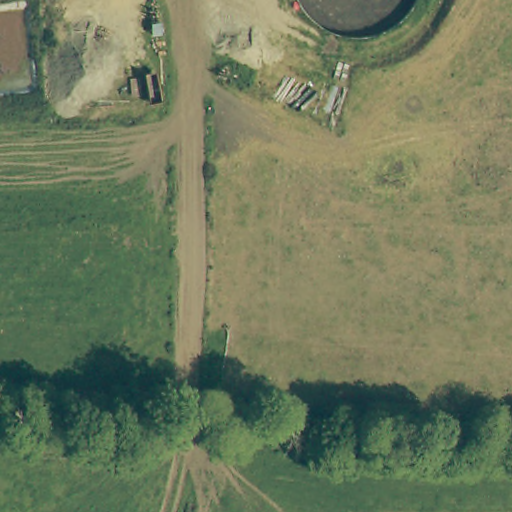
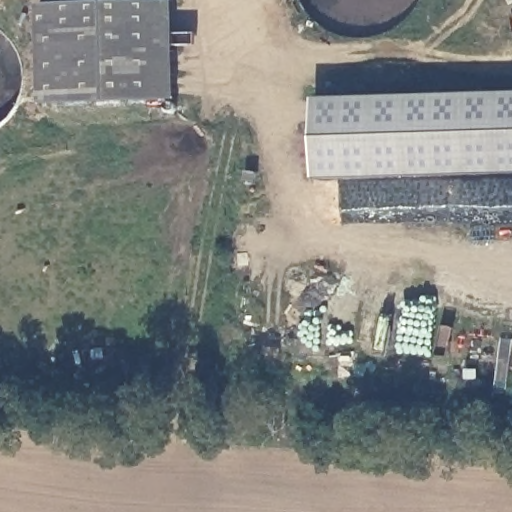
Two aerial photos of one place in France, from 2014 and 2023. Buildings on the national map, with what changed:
new [(173,0),(175,98),(45,101),(38,4),(173,0)]
new [(512,91),(512,173),(317,179),(315,98),(512,91)]

